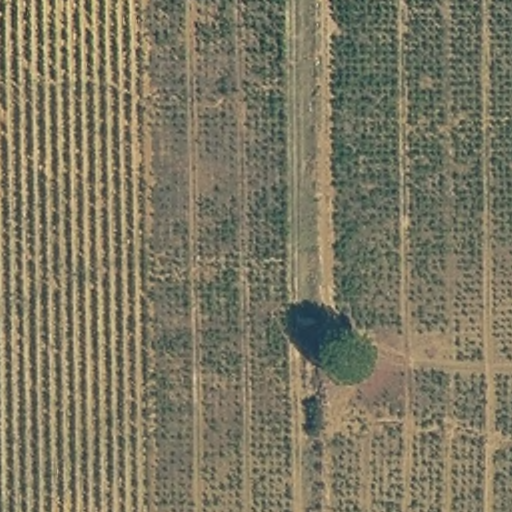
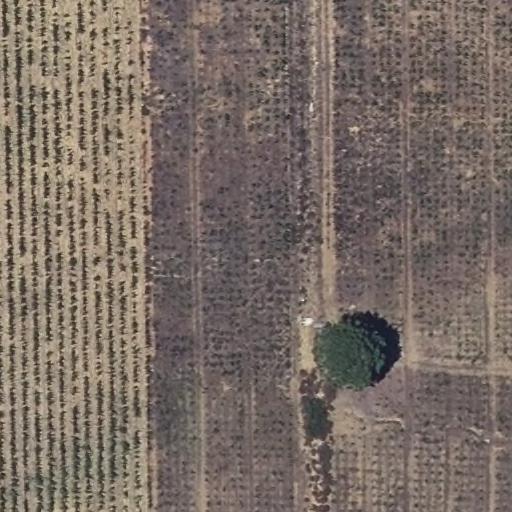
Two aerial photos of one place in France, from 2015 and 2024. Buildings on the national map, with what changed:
unchanged [(320,359),(304,361),(305,321),(330,320),(331,350),(345,350),(344,377),(321,376),(320,359)]

